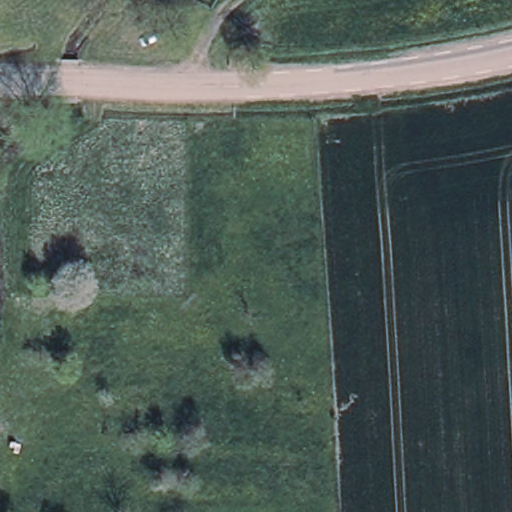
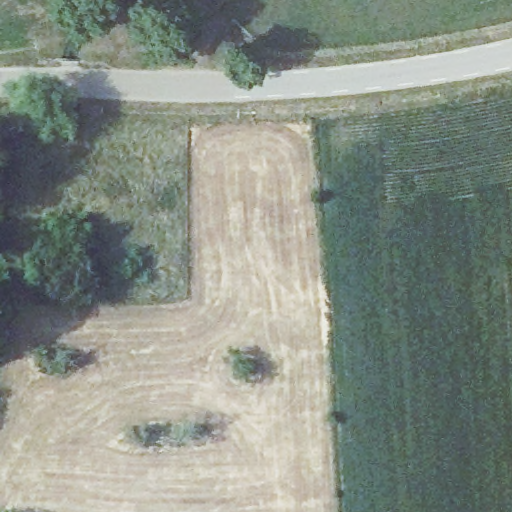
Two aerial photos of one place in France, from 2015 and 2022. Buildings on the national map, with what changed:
[]

